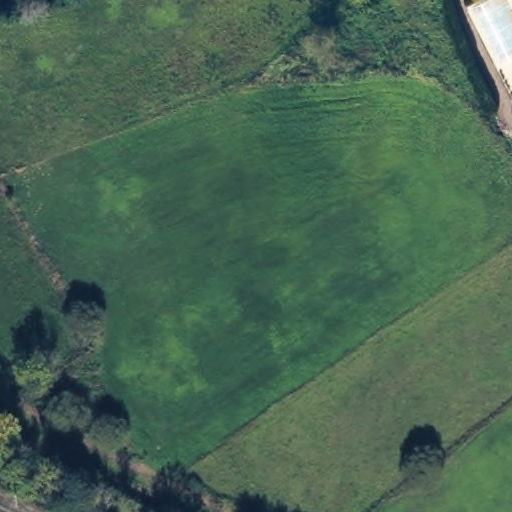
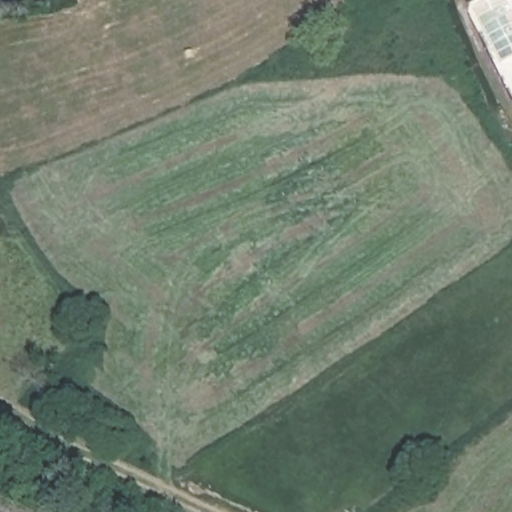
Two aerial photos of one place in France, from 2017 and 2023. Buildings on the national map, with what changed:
[]

